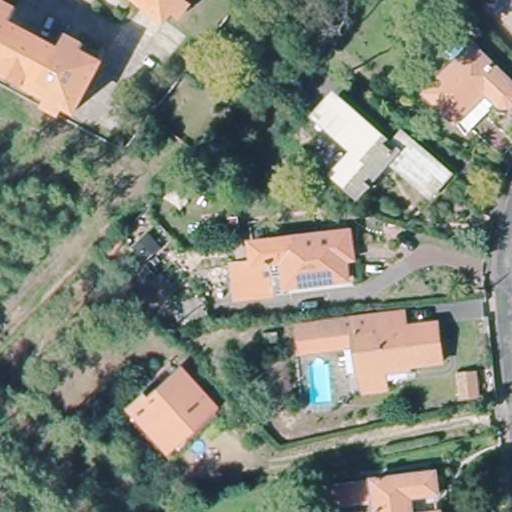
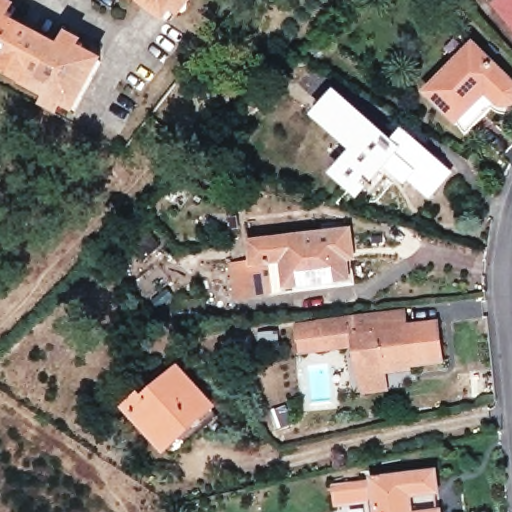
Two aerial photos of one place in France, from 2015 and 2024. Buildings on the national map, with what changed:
unchanged [(51,96),(44,93),(24,83),(29,73),(9,63),(5,73),(0,70),(0,0),(17,9),(10,23),(65,49),(72,34),(91,43),(88,49),(107,58),(81,111),(69,105),(64,116),(46,108),(51,96)]
unchanged [(160,25),(128,0),(185,0),(187,2),(173,21),(167,16),(160,25)]
unchanged [(501,6),(504,5),(502,0),(512,0),(512,23),(501,6)]
unchanged [(456,124),(422,96),(450,65),(466,46),(476,55),(506,80),(511,88),(508,99),(499,105),(492,102),(467,132),(456,124)]
unchanged [(431,190),(393,155),(376,173),(378,179),(376,182),(372,183),(367,182),(363,187),(341,166),(360,144),(321,106),(339,86),(397,141),(408,131),(450,169),(431,190)]
unchanged [(283,296),(283,300),(230,305),(229,275),(249,274),(248,258),(342,248),(343,264),(345,278),(339,278),(339,292),(283,296)]
unchanged [(359,400),(359,383),(358,355),(322,357),(321,329),(392,325),(407,325),(407,341),(441,338),(443,377),(390,381),(390,398),(359,400)]
unchanged [(139,395),(144,399),(175,370),(210,410),(164,455),(122,412),(139,395)]
unchanged [(478,399),(461,402),(457,376),(474,374),(478,399)]
unchanged [(373,501),(327,505),(325,481),(434,468),(436,490),(413,493),(413,511),(440,509),(440,512),(375,512),(373,501)]

